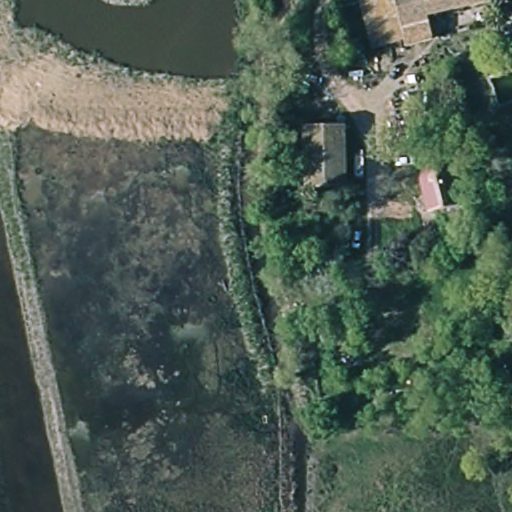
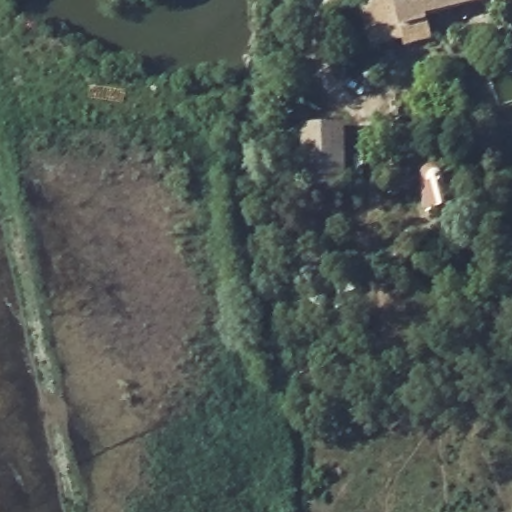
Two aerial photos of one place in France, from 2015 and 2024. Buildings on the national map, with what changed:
unchanged [(512,5),(427,24),(433,52),(404,57),(403,52),(392,1),(396,0),(512,0),(512,5)]
unchanged [(403,52),(370,59),(359,9),(392,1),(403,52)]
unchanged [(355,190),(315,191),(312,131),(354,129),(355,190)]
unchanged [(449,175),(455,184),(465,213),(434,224),(424,196),(424,184),(431,176),(440,173),(449,175)]
unchanged [(325,266),(307,266),(307,246),(325,246),(325,266)]
unchanged [(492,407),(470,412),(465,393),(487,388),(492,407)]

